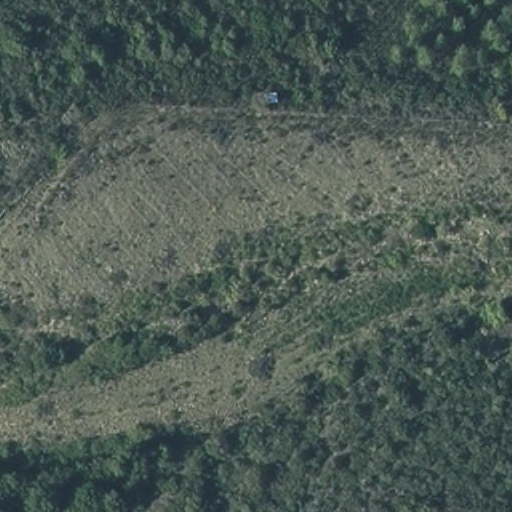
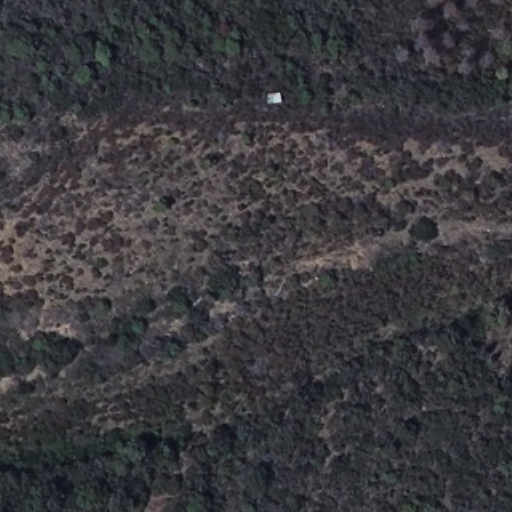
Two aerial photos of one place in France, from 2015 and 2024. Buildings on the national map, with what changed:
unchanged [(281,87),(280,106),(257,105),(258,85),(281,87)]

